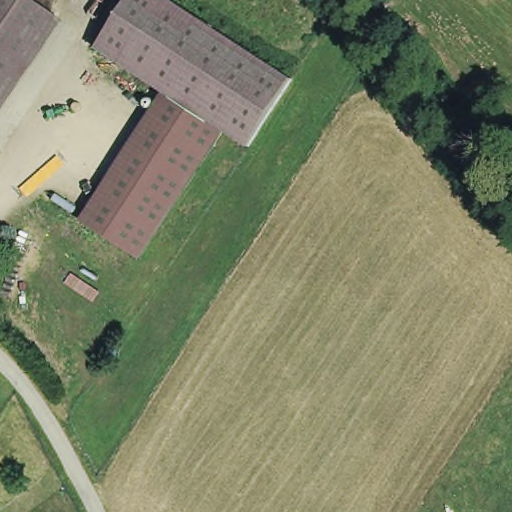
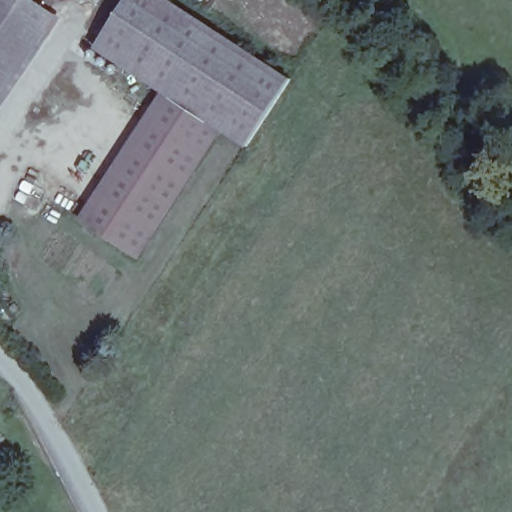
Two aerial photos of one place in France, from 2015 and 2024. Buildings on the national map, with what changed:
unchanged [(0,0),(44,0),(63,14),(0,106),(0,0)]
unchanged [(165,88),(95,41),(123,0),(182,0),(291,70),(247,144),(225,129),(165,88)]
unchanged [(225,129),(141,257),(83,219),(165,88),(225,129)]

